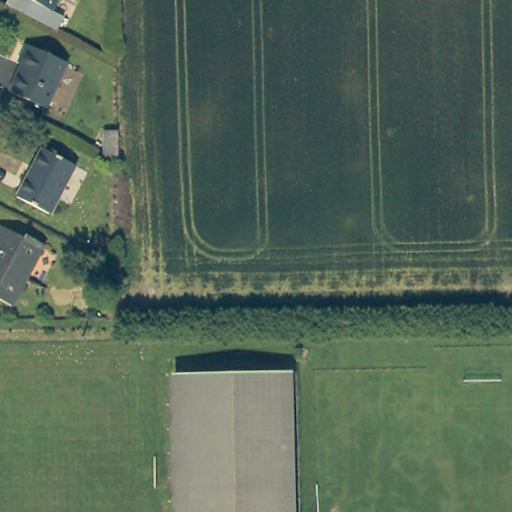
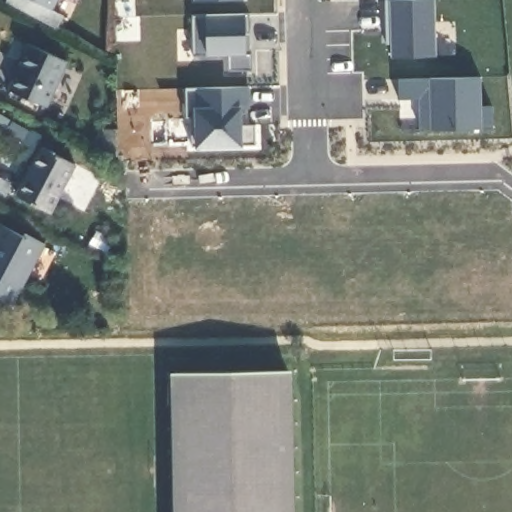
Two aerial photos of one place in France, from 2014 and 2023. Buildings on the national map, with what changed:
unchanged [(49,15),(61,21),(54,34),(35,25),(3,9),(2,9),(7,0),(56,0),(49,15)]
unchanged [(74,4),(68,4),(60,0),(76,0),(74,4)]
new [(245,1),(192,4),(192,0),(245,0),(245,1)]
new [(434,57),(388,58),(387,0),(433,0),(434,57)]
new [(247,56),(248,74),(226,74),(224,56),(205,56),(190,56),(189,15),(207,15),(244,14),(247,56)]
unchanged [(46,111),(10,94),(23,69),(18,65),(27,46),(33,49),(68,65),(46,111)]
new [(480,106),(491,105),(492,129),(419,130),(417,100),(398,100),(397,79),(479,77),(480,106)]
new [(248,125),(254,124),(255,144),(238,145),(195,146),(192,146),(191,116),(187,117),(187,89),(247,87),(248,125)]
unchanged [(118,136),(118,170),(103,161),(104,135),(118,136)]
unchanged [(75,166),(52,215),(17,197),(42,150),(75,166)]
unchanged [(17,234),(37,245),(5,305),(0,303),(0,228),(15,236),(17,234)]
unchanged [(182,512),(178,371),(289,370),(292,512),(182,512)]

